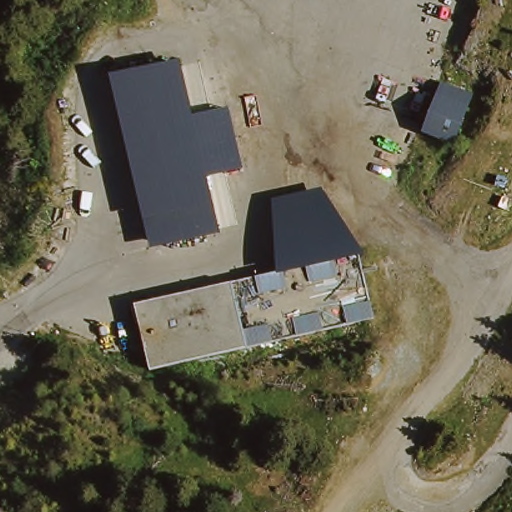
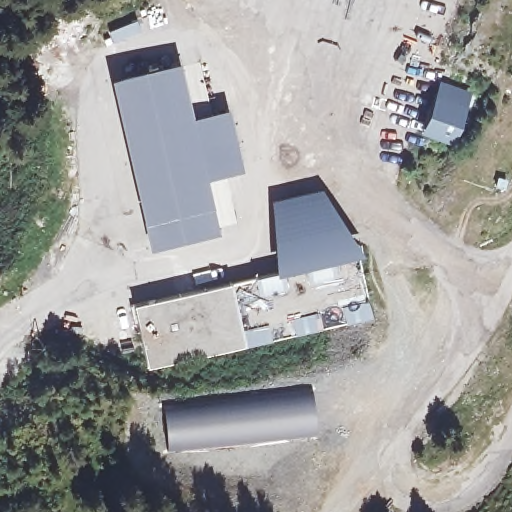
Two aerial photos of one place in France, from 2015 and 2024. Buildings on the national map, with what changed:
unchanged [(166,70),(181,66),(193,117),(207,178),(219,229),(158,243),(140,169),(119,80),(166,70)]
unchanged [(469,94),(453,137),(429,129),(446,85),(469,94)]
unchanged [(211,112),(227,109),(241,170),(226,174),(207,178),(193,117),(211,112)]
unchanged [(146,372),(129,305),(267,270),(269,200),(321,192),(341,251),(356,245),(373,320),(146,372)]
new [(221,390),(311,381),(318,437),(168,455),(160,400),(221,390)]

